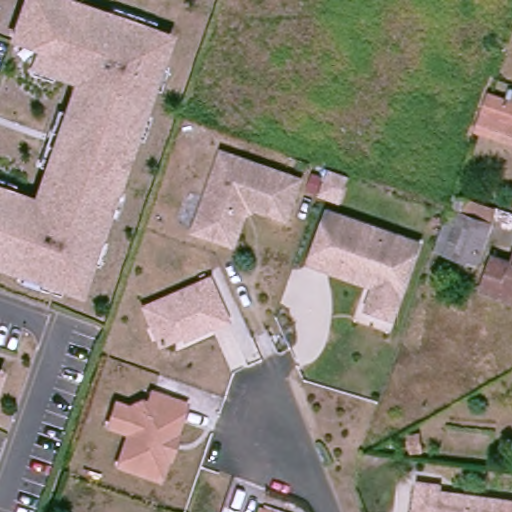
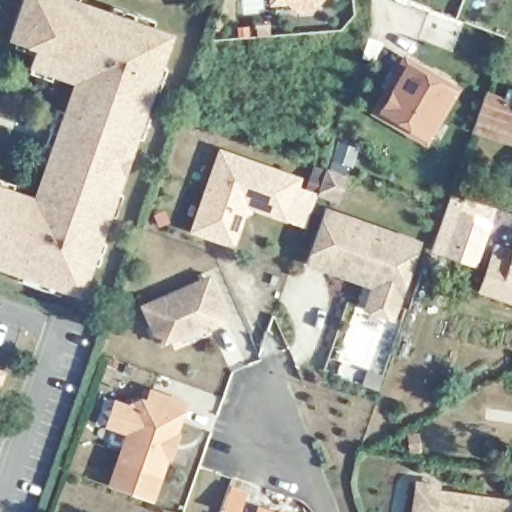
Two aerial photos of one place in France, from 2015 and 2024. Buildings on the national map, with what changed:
unchanged [(74,95),(78,83),(34,67),(40,50),(13,40),(27,0),(62,0),(171,38),(81,295),(0,267),(0,190),(37,202),(41,189),(74,95)]
new [(322,0),(320,2),(315,10),(296,10),(286,2),(269,3),(269,0),(322,0)]
new [(426,145),(370,112),(403,54),(459,88),(426,145)]
unchanged [(486,94),(512,102),(512,149),(472,135),(486,94)]
unchanged [(286,218),(265,211),(245,213),(235,237),(225,242),(193,231),(206,194),(221,150),(282,170),(279,179),(297,184),(286,218)]
unchanged [(322,172),(340,178),(331,202),(313,196),(322,172)]
unchanged [(477,265),(448,256),(438,254),(456,199),(466,202),(496,211),(477,265)]
unchanged [(395,312),(369,305),(376,282),(312,259),(328,209),(419,241),(395,312)]
unchanged [(512,305),(480,293),(491,262),(511,269),(512,266),(512,305)]
unchanged [(184,335),(162,346),(146,308),(211,278),(229,322),(213,330),(187,343),(184,335)]
unchanged [(173,458),(165,457),(157,481),(117,470),(128,436),(106,430),(113,408),(125,410),(137,403),(145,406),(150,393),(182,405),(172,436),(179,438),(173,458)]
unchanged [(419,486),(440,488),(439,496),(512,507),(512,512),(416,512),(419,486)]

